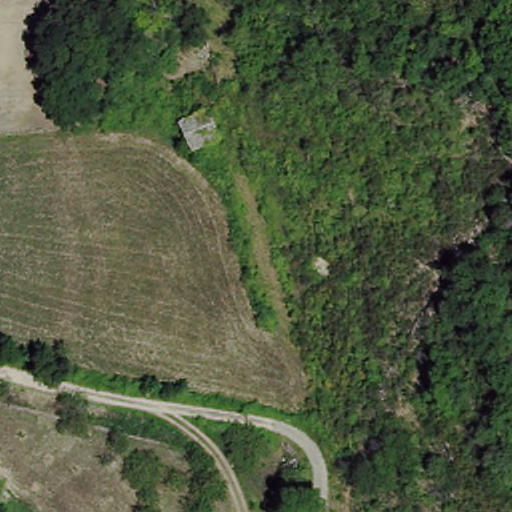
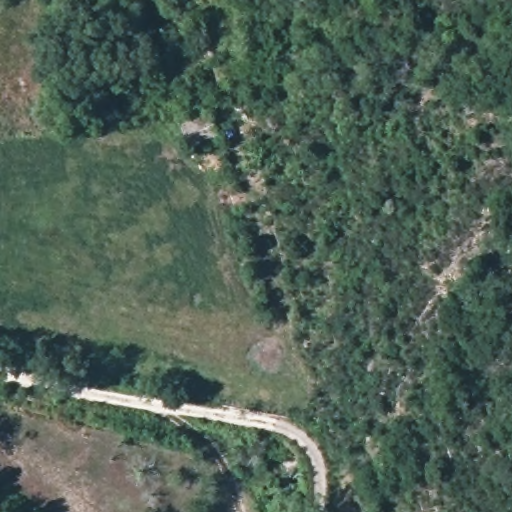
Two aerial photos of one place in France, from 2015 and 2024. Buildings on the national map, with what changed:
unchanged [(223,145),(191,160),(176,127),(210,111),(223,145)]

